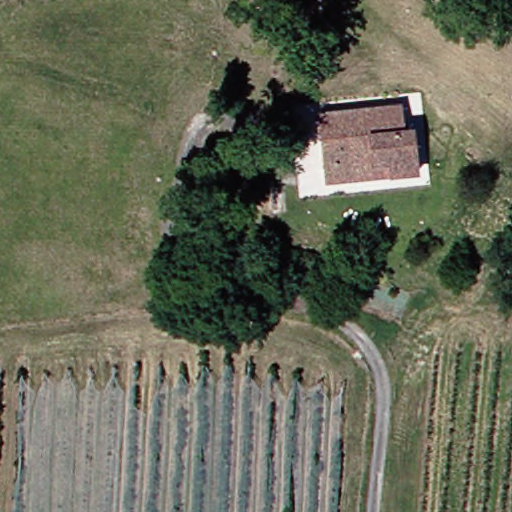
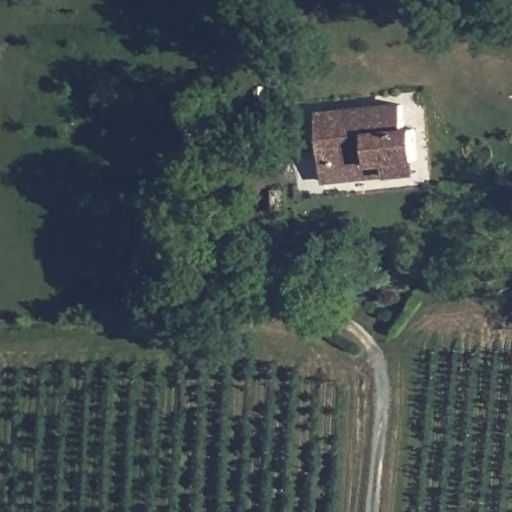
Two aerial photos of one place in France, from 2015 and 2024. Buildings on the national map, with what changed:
unchanged [(350,178),(322,180),(320,174),(314,114),(392,106),(394,122),(398,128),(407,126),(410,158),(411,171),(350,178)]

